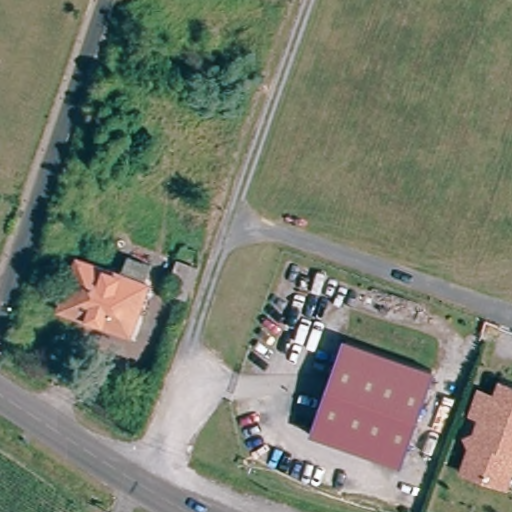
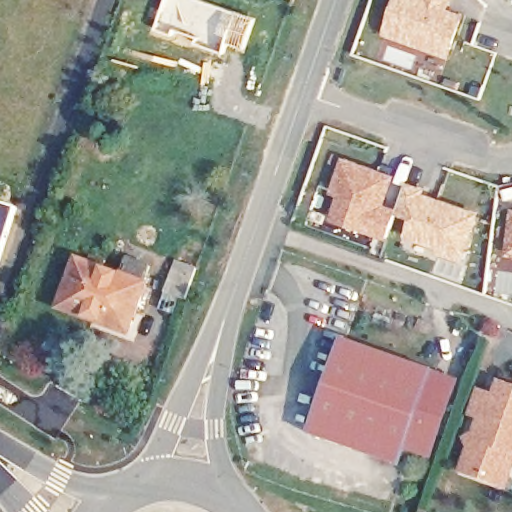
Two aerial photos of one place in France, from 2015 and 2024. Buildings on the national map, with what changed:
new [(162,0),(202,0),(241,14),(226,53),(167,30),(166,32),(152,28),(162,0)]
new [(452,8),(467,14),(452,57),(383,35),(396,0),(455,0),(452,8)]
new [(428,188),(426,193),(481,213),(464,262),(436,255),(438,247),(405,237),(410,221),(397,216),(390,241),(331,222),(340,196),(331,193),(345,157),(397,175),(386,204),(400,209),(408,182),(428,188)]
new [(0,260),(0,200),(19,207),(1,261),(0,260)]
new [(512,215),(512,255),(507,255),(512,215)]
unchanged [(59,310),(76,264),(119,279),(125,262),(149,271),(142,287),(125,335),(59,310)]
unchanged [(194,269),(181,301),(160,293),(172,262),(194,269)]
unchanged [(431,366),(397,463),(305,431),(340,333),(431,366)]
unchanged [(465,466),(473,444),(468,433),(479,429),(485,413),(475,408),(483,387),(500,394),(505,381),(512,384),(512,479),(510,483),(489,476),(465,466)]

